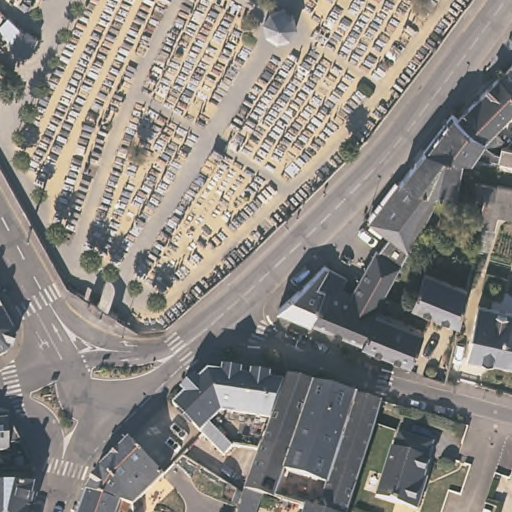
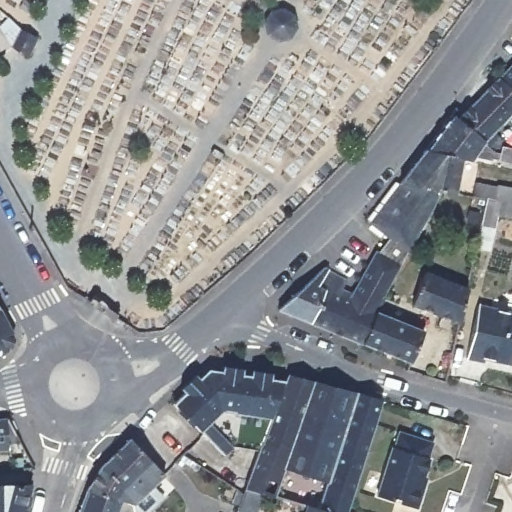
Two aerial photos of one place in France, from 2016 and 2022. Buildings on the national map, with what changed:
unchanged [(32,58),(15,48),(16,46),(3,29),(12,19),(25,32),(41,41),(32,58)]
unchanged [(512,64),(512,94),(496,81),(508,67),(512,64)]
unchanged [(501,149),(497,152),(490,159),(488,158),(479,151),(481,148),(455,123),(494,79),(496,81),(512,94),(512,117),(491,140),(501,149)]
unchanged [(423,154),(450,118),(455,123),(481,148),(479,151),(488,158),(480,168),(471,160),(467,165),(459,163),(423,154)]
unchanged [(497,152),(512,155),(512,169),(495,166),(497,152)]
unchanged [(399,185),(423,154),(459,163),(452,198),(440,195),(399,185)]
unchanged [(484,227),(490,200),(477,197),(480,184),(500,188),(501,186),(512,188),(512,205),(503,203),(501,216),(498,230),(493,229),(490,251),(479,249),(484,227)]
unchanged [(362,347),(310,327),(322,296),(316,292),(323,275),(340,285),(334,301),(343,305),(373,255),(387,241),(367,226),(399,185),(440,195),(396,275),(376,314),(362,347)]
unchanged [(479,262),(474,285),(465,282),(470,260),(479,262)]
unchanged [(272,312),(286,283),(301,263),(317,272),(323,275),(316,292),(322,296),(310,327),(276,314),(272,312)]
unchanged [(465,284),(457,317),(410,307),(417,272),(465,284)]
unchanged [(15,330),(3,355),(0,357),(0,304),(15,330)]
unchanged [(512,367),(484,359),(482,365),(466,361),(478,308),(512,316),(512,367)]
unchanged [(376,314),(422,335),(409,365),(362,347),(376,314)]
unchanged [(267,436),(265,437),(263,442),(236,439),(229,448),(177,396),(187,385),(184,381),(197,367),(202,371),(207,366),(211,364),(215,364),(225,365),(226,359),(246,362),(245,367),(255,368),(260,364),(273,366),(274,371),(288,374),(267,436)]
unchanged [(265,437),(267,436),(288,374),(290,369),(318,376),(280,489),(250,481),(263,442),(265,437)]
unchanged [(280,489),(318,376),(361,387),(322,502),(313,500),(280,489)]
unchanged [(322,502),(361,387),(387,393),(352,502),(350,510),(322,502)]
unchanged [(9,417),(11,449),(0,450),(0,418),(9,417)]
unchanged [(435,441),(430,455),(432,456),(422,484),(424,484),(416,505),(378,491),(395,443),(397,444),(402,430),(435,441)]
unchanged [(128,496),(90,483),(101,462),(133,432),(168,468),(140,500),(128,496)]
unchanged [(123,512),(80,512),(90,483),(128,496),(123,512)]
unchanged [(32,485),(26,512),(0,512),(0,486),(32,485)]
unchanged [(309,512),(313,500),(322,502),(350,510),(349,512),(309,512)]

